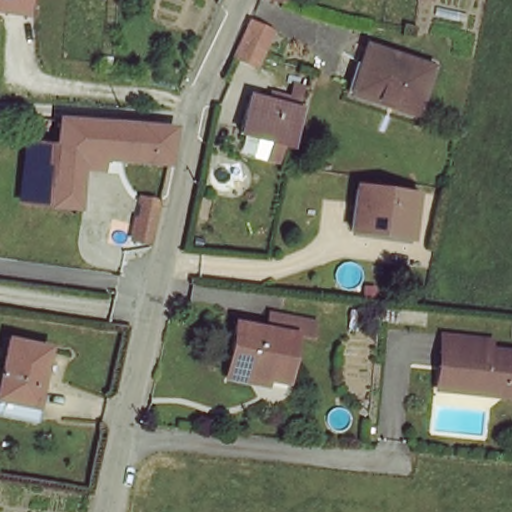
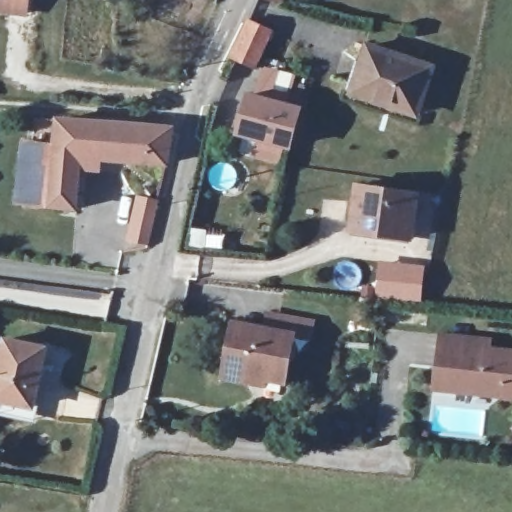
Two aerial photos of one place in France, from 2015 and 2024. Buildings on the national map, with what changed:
unchanged [(0,10),(0,0),(28,0),(26,13),(0,10)]
unchanged [(290,0),(289,14),(289,19),(267,17),(268,0),(290,0)]
unchanged [(271,31),(266,55),(265,66),(231,62),(248,27),(271,31)]
unchanged [(420,115),(367,97),(351,92),(366,46),(383,52),(436,68),(420,115)]
unchanged [(292,134),(289,148),(239,137),(248,99),(298,107),(292,134)]
unchanged [(52,152),(20,149),(23,120),(74,123),(172,130),(166,167),(88,162),(82,216),(47,212),(52,152)]
unchanged [(52,152),(47,212),(39,212),(13,208),(20,149),(52,152)]
unchanged [(358,183),(415,196),(405,240),(349,228),(358,183)]
unchanged [(140,207),(159,209),(156,219),(151,240),(134,238),(137,219),(140,207)]
new [(379,260),(426,264),(422,302),(375,298),(379,260)]
unchanged [(267,310),(316,317),(315,340),(297,333),(264,327),(267,310)]
unchanged [(232,330),(290,338),(283,384),(225,375),(232,330)]
unchanged [(493,340),(493,350),(512,353),(512,393),(438,385),(444,334),(493,340)]
unchanged [(12,342),(55,353),(39,411),(0,401),(0,368),(4,369),(12,342)]

